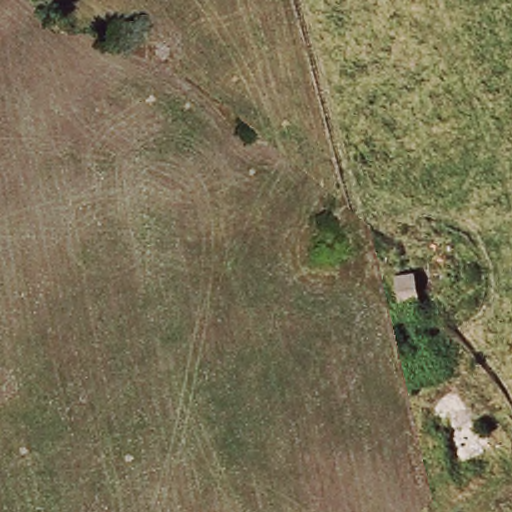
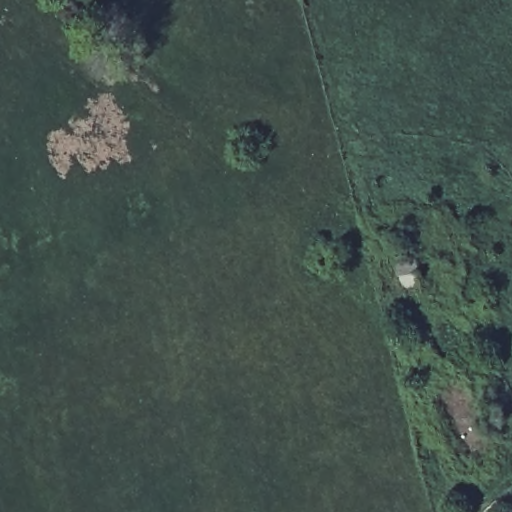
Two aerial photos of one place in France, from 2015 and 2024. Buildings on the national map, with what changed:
[]

